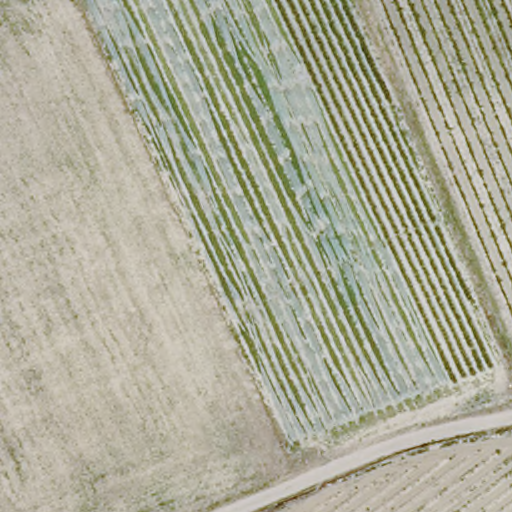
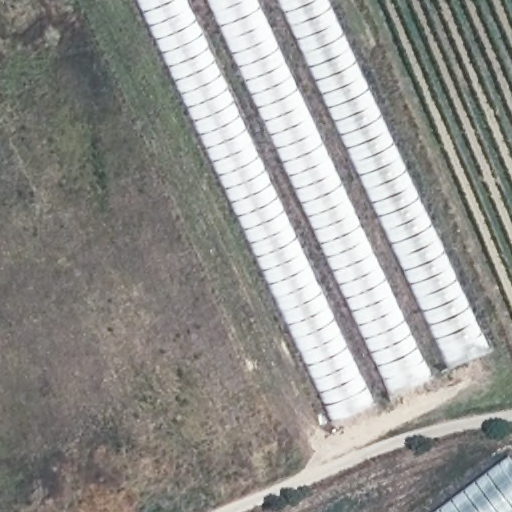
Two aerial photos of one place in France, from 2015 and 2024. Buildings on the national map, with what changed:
new [(491,348),(334,419),(140,0),(327,0),(491,348)]
new [(431,512),(509,453),(512,458),(512,508),(507,512),(431,512)]

